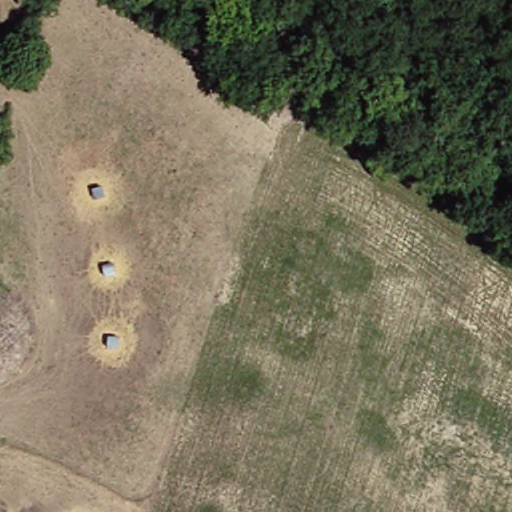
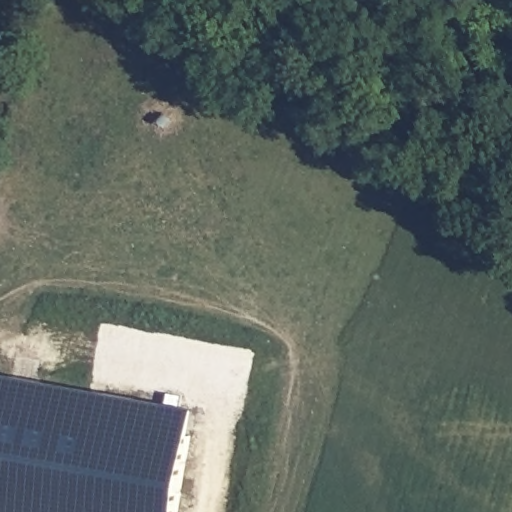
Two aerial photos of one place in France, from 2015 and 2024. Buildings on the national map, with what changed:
new [(178,512),(0,512),(0,372),(197,409),(178,512)]

